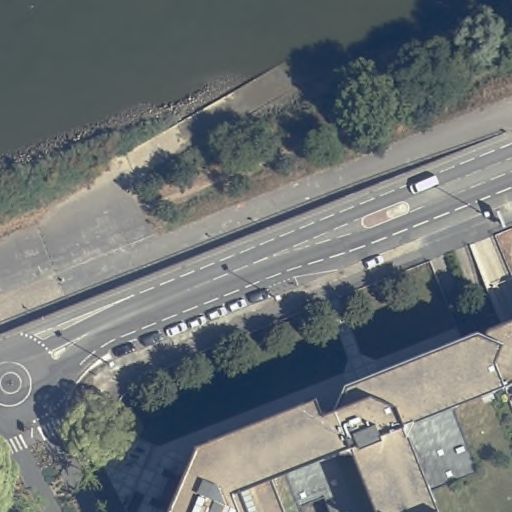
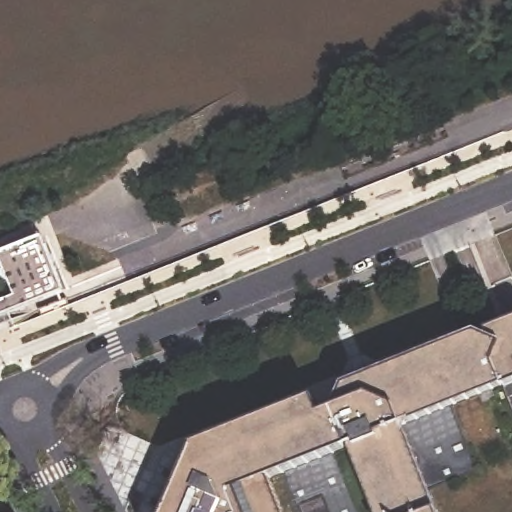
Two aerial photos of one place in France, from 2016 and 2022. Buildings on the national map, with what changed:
new [(0,316),(0,254),(42,237),(63,291),(0,316)]
unchanged [(209,477),(211,469),(210,464),(224,460),(220,446),(326,401),(333,418),(344,416),(350,414),(357,397),(493,340),(512,331),(512,512),(194,512),(209,477)]
unchanged [(186,467),(209,477),(194,512),(168,512),(186,467)]

